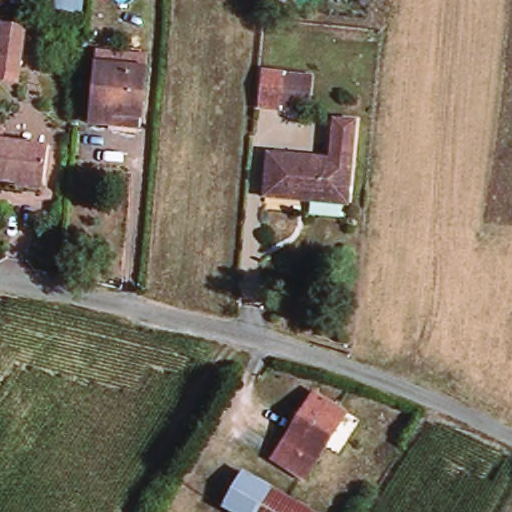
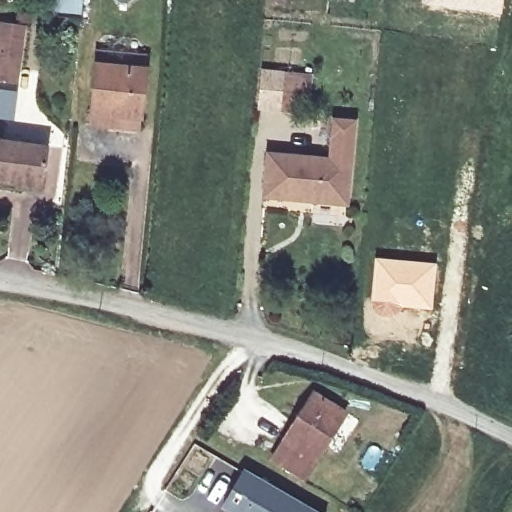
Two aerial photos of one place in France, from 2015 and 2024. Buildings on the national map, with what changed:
new [(425,0),(503,0),(500,16),(424,5),(425,0)]
unchanged [(1,16),(27,21),(25,31),(20,73),(0,71),(0,30),(0,26),(1,16)]
unchanged [(156,68),(152,127),(102,123),(106,64),(156,68)]
unchanged [(315,74),(312,111),(273,106),(276,69),(315,74)]
unchanged [(284,156),(342,161),(345,122),(365,125),(360,180),(283,172),(284,156)]
unchanged [(10,131),(9,141),(57,148),(50,204),(41,210),(29,208),(22,200),(24,187),(0,183),(0,128),(10,131)]
unchanged [(360,180),(358,206),(281,200),(283,172),(360,180)]
new [(374,256),(437,263),(432,310),(402,306),(396,314),(375,312),(370,301),(374,256)]
unchanged [(281,461),(323,390),(360,412),(316,483),(281,461)]
unchanged [(244,512),(242,511),(226,503),(247,469),(261,477),(326,511),(326,512),(244,512)]

